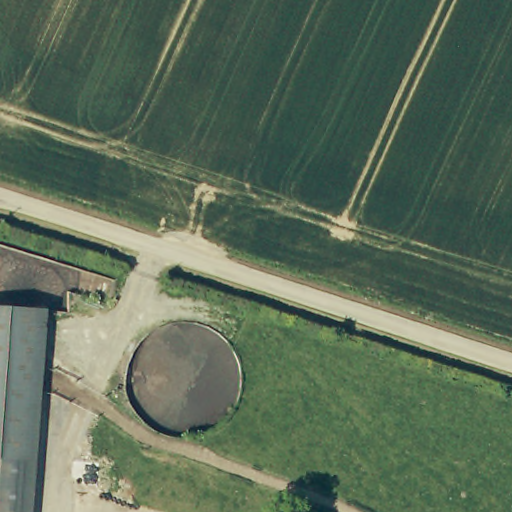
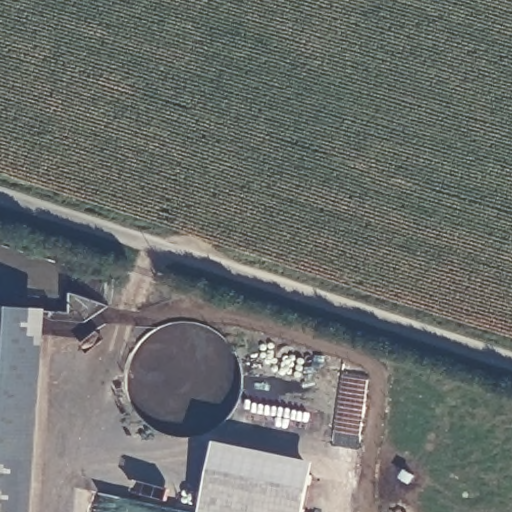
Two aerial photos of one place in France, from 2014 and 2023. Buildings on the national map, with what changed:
unchanged [(22,483),(20,512),(0,512),(0,305),(32,307),(22,483)]
new [(200,512),(214,438),(314,460),(304,512),(200,512)]

